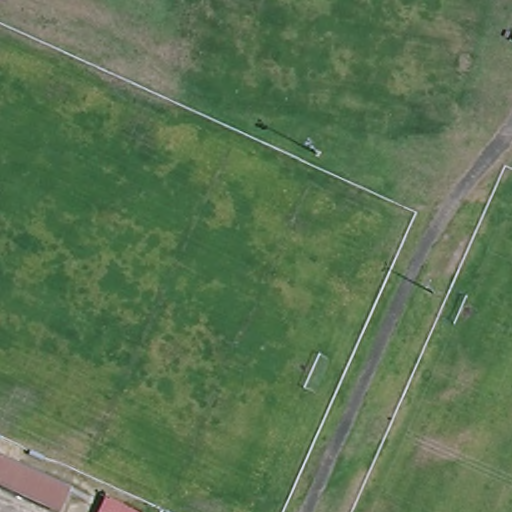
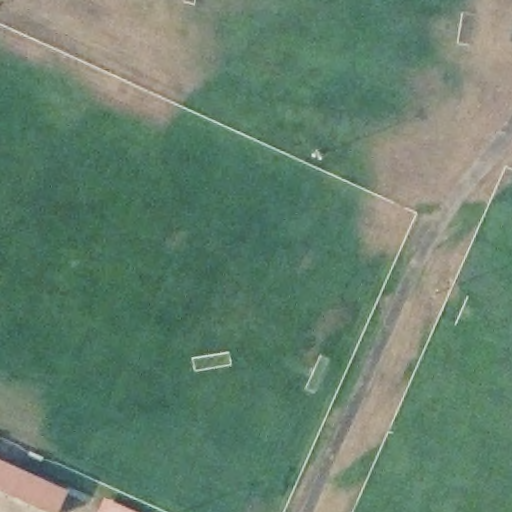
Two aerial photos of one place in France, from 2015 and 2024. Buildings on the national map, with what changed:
unchanged [(0,489),(0,468),(70,500),(64,512),(52,512),(0,489)]
unchanged [(106,504),(124,512),(102,512),(106,504)]

